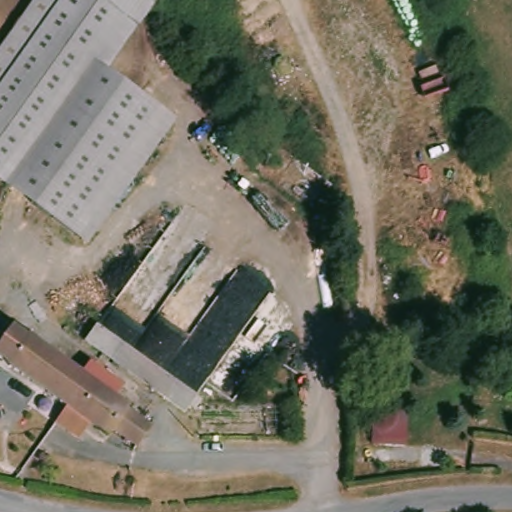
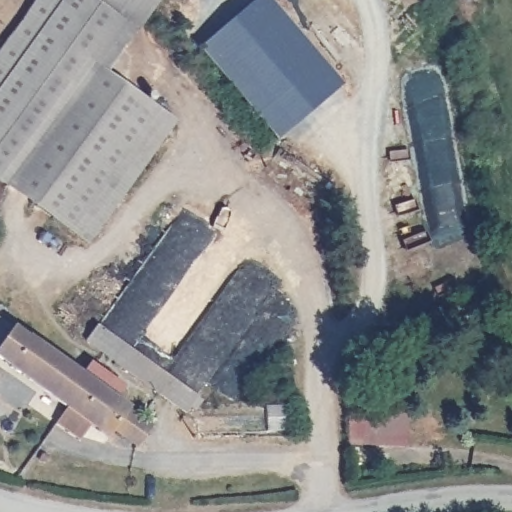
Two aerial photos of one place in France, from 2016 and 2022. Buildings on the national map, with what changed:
unchanged [(133,30),(107,70),(163,112),(73,235),(2,187),(0,186),(0,46),(33,0),(91,0),(133,30)]
unchanged [(133,30),(91,0),(158,0),(133,30)]
new [(256,0),(270,0),(341,85),(278,138),(200,47),(256,0)]
unchanged [(134,451),(110,431),(105,439),(6,369),(0,364),(0,319),(27,334),(127,407),(151,426),(134,451)]
unchanged [(157,400),(107,364),(92,352),(80,343),(92,327),(120,348),(170,384),(157,400)]
new [(361,443),(362,408),(407,410),(406,445),(361,443)]

